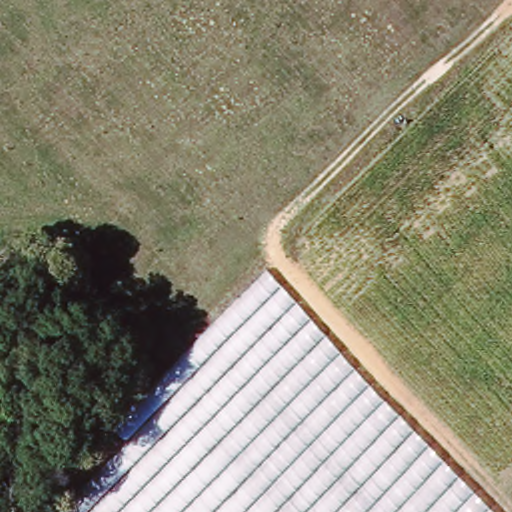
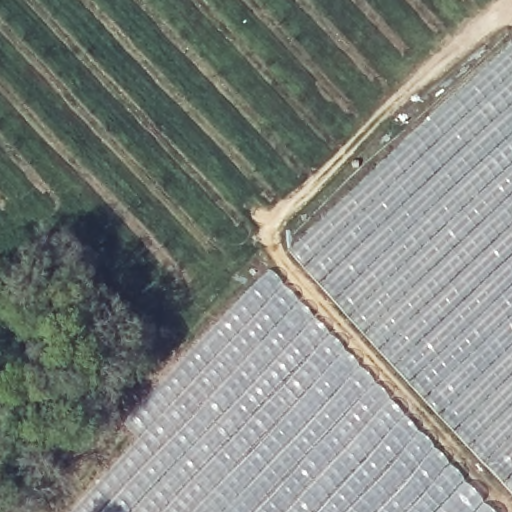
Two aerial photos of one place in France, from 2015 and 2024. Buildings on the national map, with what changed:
demolished [(276,249),(402,133),(512,22),(512,505),(509,508),(276,249)]
unchanged [(131,433),(119,420),(265,267),(482,512),(52,512),(131,433)]

